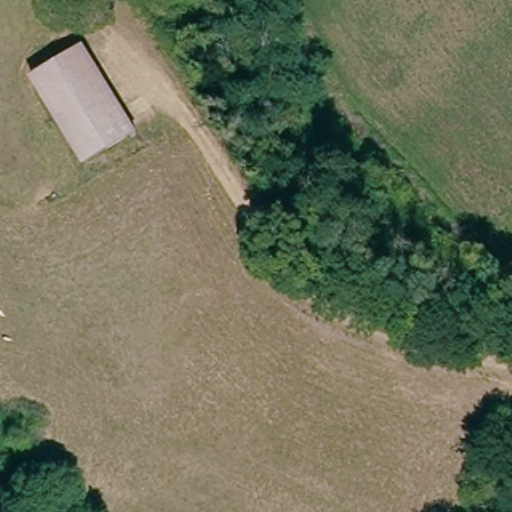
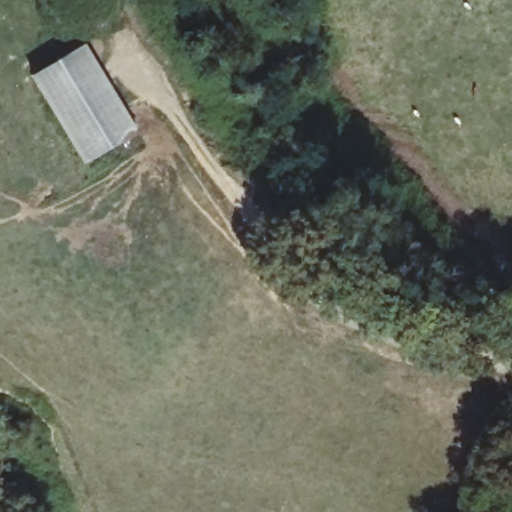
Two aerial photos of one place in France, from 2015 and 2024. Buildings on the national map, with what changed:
unchanged [(136,131),(85,162),(32,75),(84,44),(136,131)]

